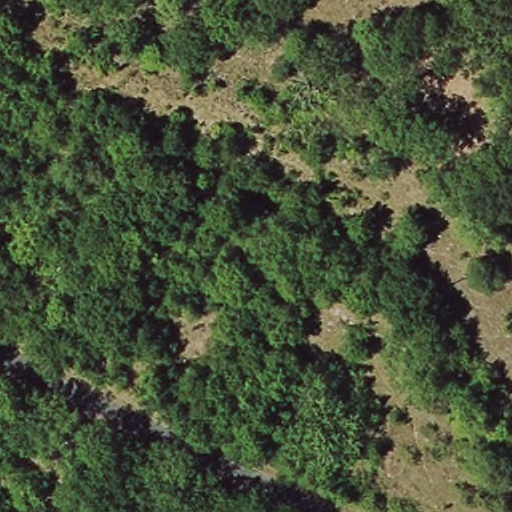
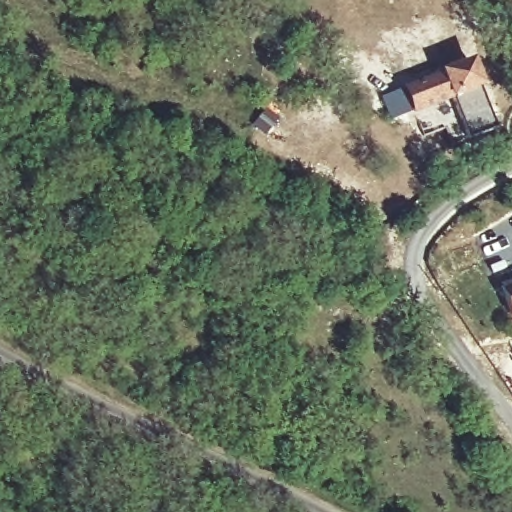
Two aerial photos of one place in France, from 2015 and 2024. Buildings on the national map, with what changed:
new [(451,100),(412,116),(410,113),(390,123),(380,99),(402,89),(439,72),(472,60),(482,89),(479,90),(493,130),(468,140),(451,100)]
new [(512,284),(512,319),(510,320),(500,289),(512,284)]

